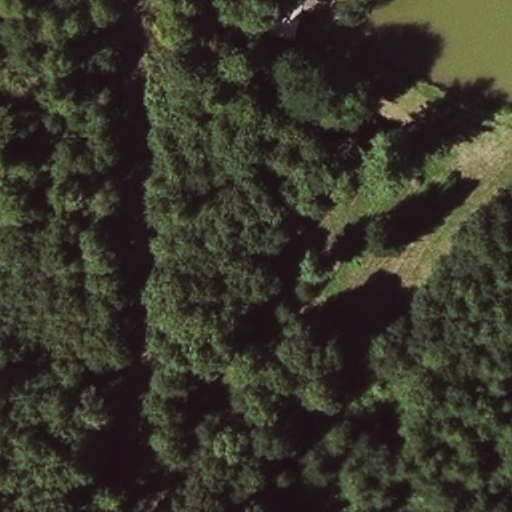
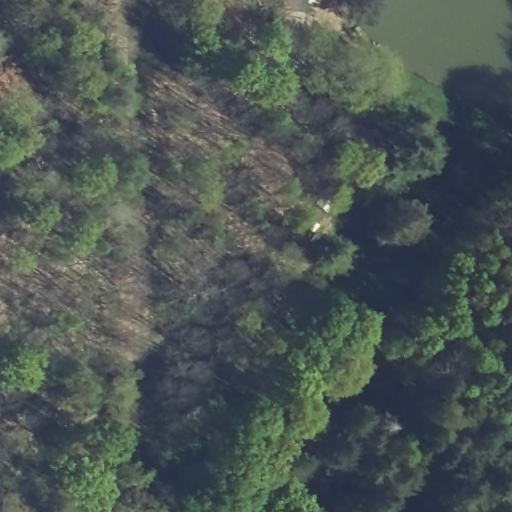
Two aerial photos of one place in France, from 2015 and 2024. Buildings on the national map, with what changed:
unchanged [(293,8),(295,0),(318,0),(310,34),(282,28),(286,7),(293,8)]

